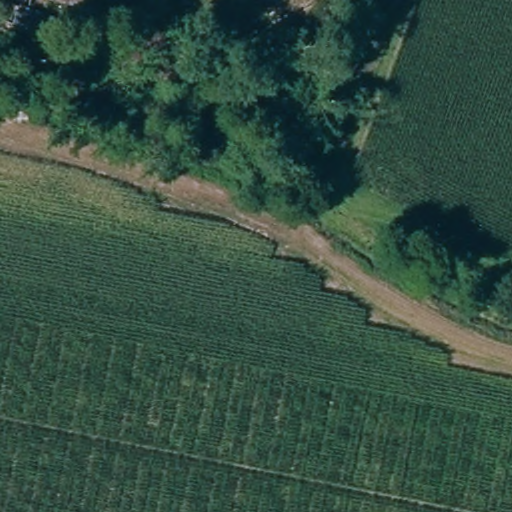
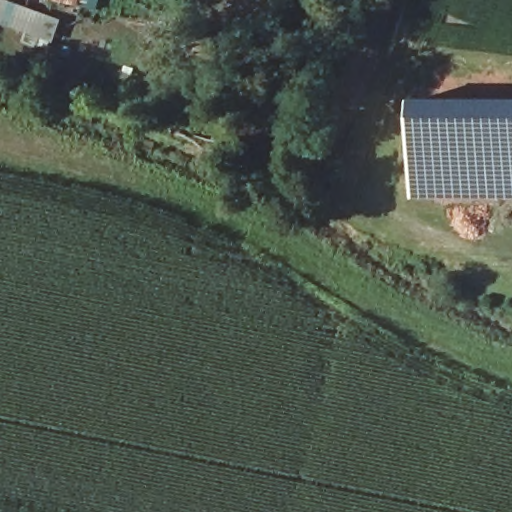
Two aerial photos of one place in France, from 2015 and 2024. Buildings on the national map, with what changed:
unchanged [(73,8),(59,44),(0,20),(0,19),(6,3),(18,8),(22,0),(111,0),(103,20),(73,8)]
new [(413,101),(512,101),(512,197),(413,196),(413,101)]

